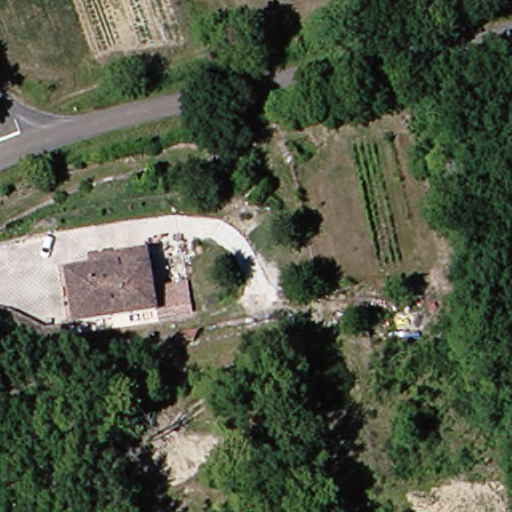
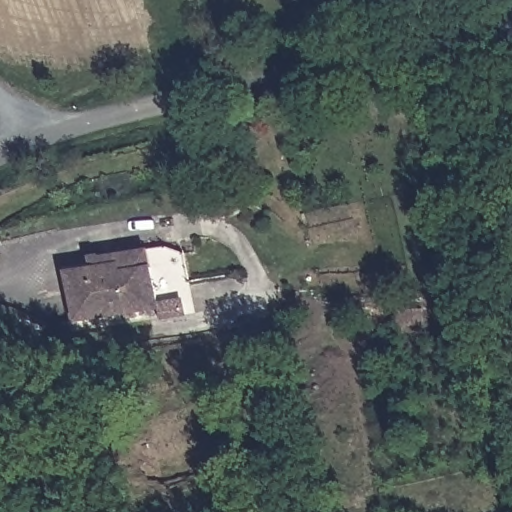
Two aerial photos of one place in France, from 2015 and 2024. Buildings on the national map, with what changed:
unchanged [(150,268),(115,273),(115,268),(86,272),(84,259),(147,249),(150,268)]
unchanged [(157,311),(68,323),(61,275),(86,272),(115,268),(115,273),(150,268),(157,311)]

